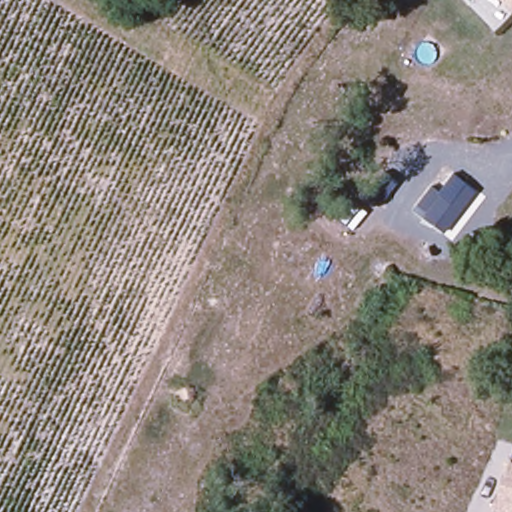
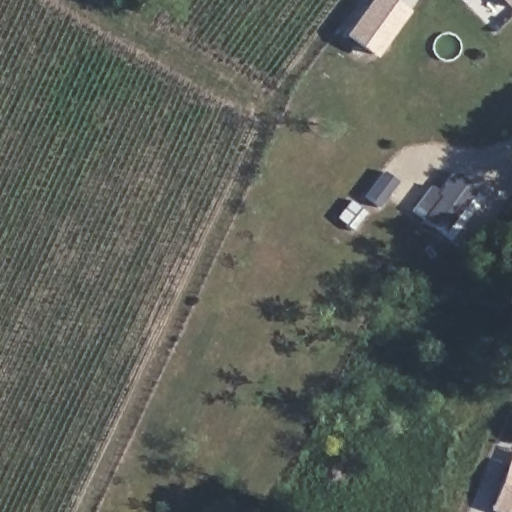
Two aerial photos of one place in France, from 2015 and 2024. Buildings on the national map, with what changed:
new [(369,0),(390,0),(407,13),(374,59),(344,35),(369,0)]
unchanged [(502,0),(512,0),(512,2),(507,6),(502,0)]
unchanged [(411,217),(428,195),(439,202),(453,184),(462,192),(472,202),(458,218),(440,241),(411,217)]
unchanged [(490,509),(510,466),(512,467),(512,512),(496,512),(490,509)]

